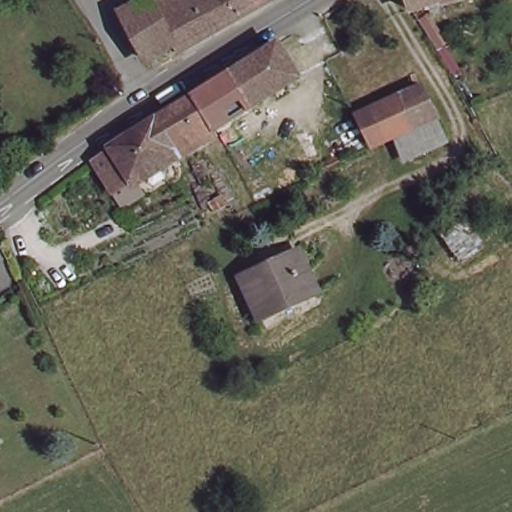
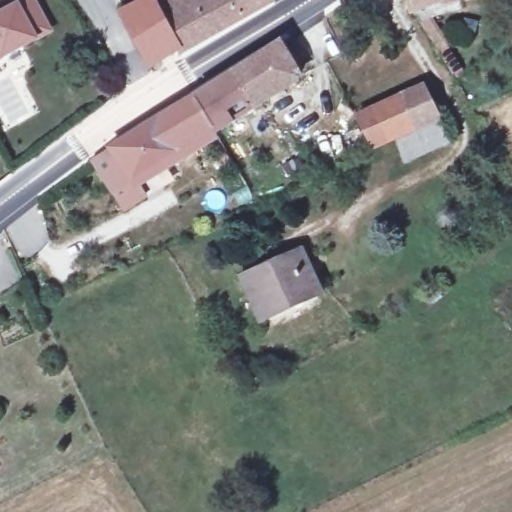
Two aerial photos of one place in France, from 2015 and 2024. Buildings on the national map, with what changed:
new [(0,60),(0,11),(20,0),(39,40),(1,59),(0,60)]
unchanged [(271,0),(272,3),(243,20),(176,52),(174,48),(149,64),(121,13),(149,0),(271,0)]
unchanged [(418,17),(411,0),(479,0),(464,4),(418,17)]
unchanged [(301,68),(222,118),(198,134),(138,169),(147,187),(127,198),(98,150),(178,100),(280,37),(301,68)]
unchanged [(424,84),(453,148),(403,171),(392,148),(372,154),(354,115),(424,84)]
unchanged [(304,249),(324,289),(263,319),(243,280),(304,249)]

